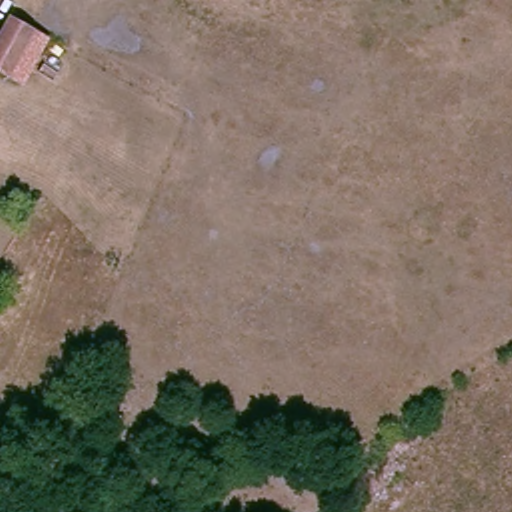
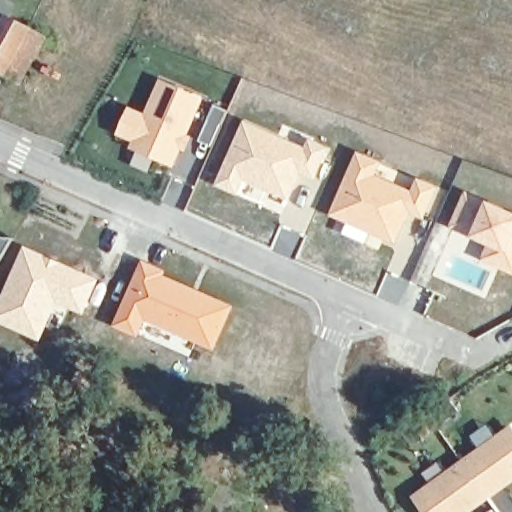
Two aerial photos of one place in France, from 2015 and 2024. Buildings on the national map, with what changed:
unchanged [(0,71),(0,47),(12,24),(41,38),(20,81),(0,71)]
new [(128,105),(144,112),(160,78),(205,96),(175,169),(154,160),(148,173),(130,165),(136,152),(127,149),(131,143),(115,136),(128,105)]
new [(213,105),(229,111),(212,147),(197,140),(213,105)]
new [(244,118),(306,144),(308,137),(330,147),(315,181),(302,176),(287,204),(247,185),(241,196),(215,186),(244,118)]
new [(356,151),(383,163),(379,173),(411,188),(415,178),(439,187),(422,221),(410,215),(396,248),(328,216),(356,151)]
new [(512,210),(512,275),(478,261),(487,245),(470,237),(487,199),(512,210)]
new [(24,245),(101,279),(83,317),(66,310),(65,312),(57,309),(41,343),(0,324),(0,297),(24,245)]
new [(142,259),(167,270),(165,273),(234,305),(214,351),(145,322),(137,338),(112,326),(142,259)]
new [(425,512),(413,497),(512,425),(512,482),(471,512),(425,512)]

